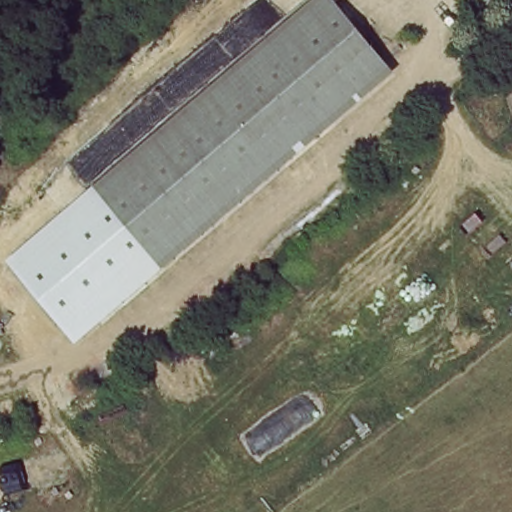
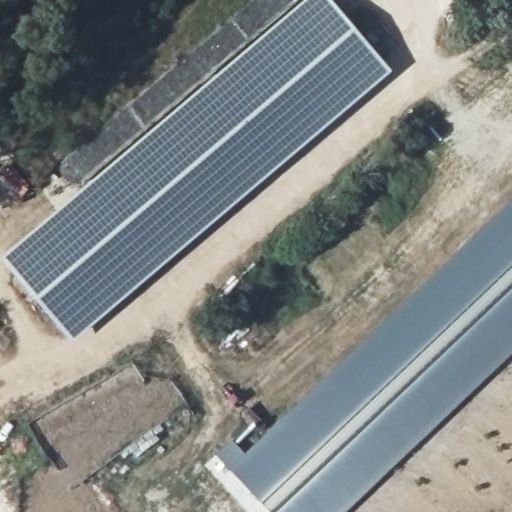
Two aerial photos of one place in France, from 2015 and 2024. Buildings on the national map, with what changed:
unchanged [(164,270),(91,186),(311,0),(332,0),(398,74),(164,270)]
new [(161,266),(72,342),(1,258),(91,186),(161,266)]
new [(512,201),(512,355),(345,512),(270,512),(213,452),(233,440),(246,452),(512,201)]

